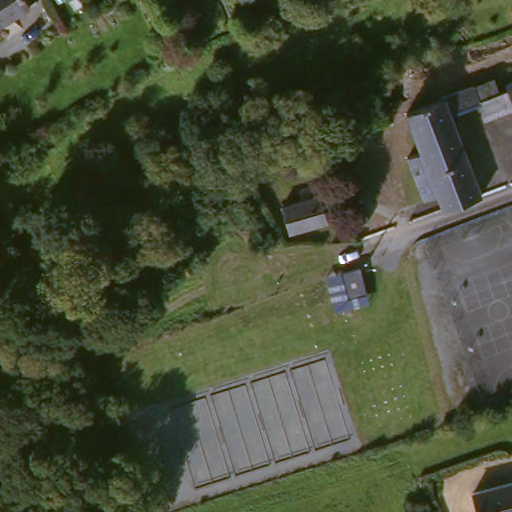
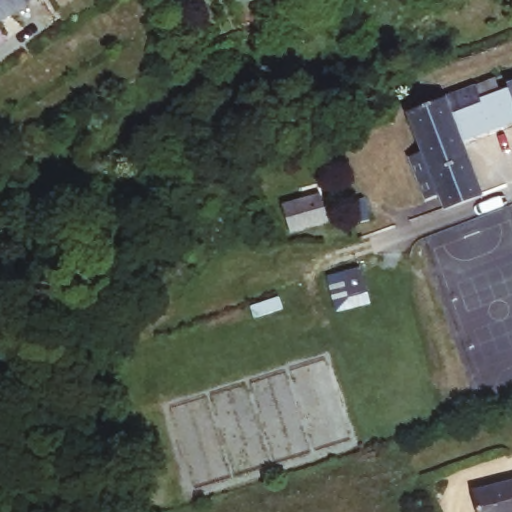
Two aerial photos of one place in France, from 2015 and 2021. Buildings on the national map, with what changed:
unchanged [(25,0),(31,10),(18,16),(21,21),(0,32),(0,0),(25,0)]
unchanged [(403,155),(419,149),(405,111),(439,99),(438,95),(488,76),(495,91),(477,99),(484,118),(453,131),(479,193),(443,208),(438,194),(423,200),(403,155)]
unchanged [(502,88),(499,82),(512,77),(512,109),(503,88),(502,88)]
unchanged [(484,118),(477,99),(495,91),(502,88),(503,88),(512,109),(512,125),(490,134),(484,118)]
unchanged [(301,208),(296,197),(312,191),(317,202),(326,224),(293,238),(283,215),(301,208)]
unchanged [(138,198),(149,214),(106,242),(94,226),(138,198)]
unchanged [(512,485),(512,512),(472,512),(468,499),(512,485)]

